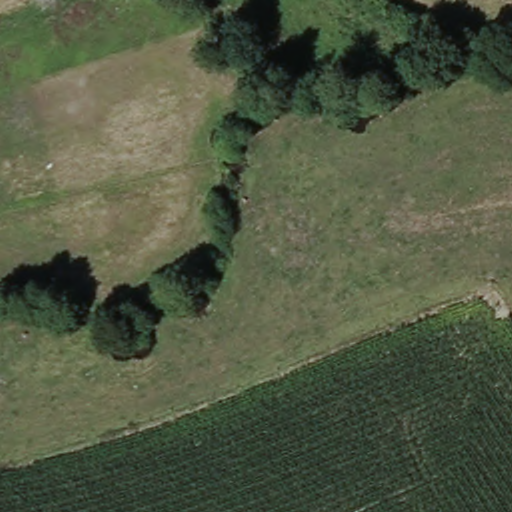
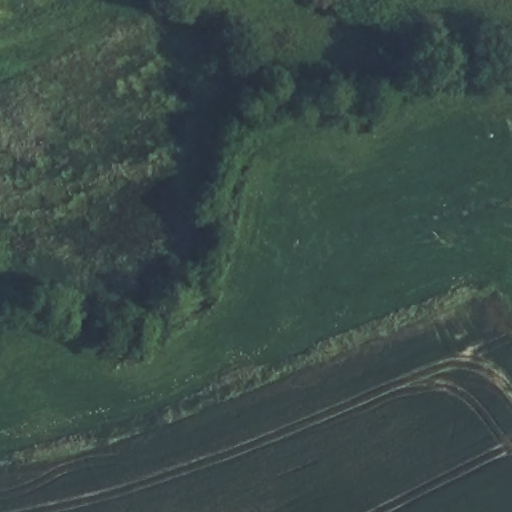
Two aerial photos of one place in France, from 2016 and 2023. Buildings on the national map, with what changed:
[]

